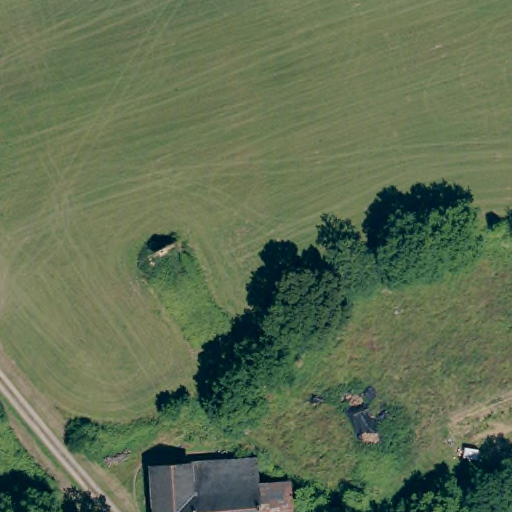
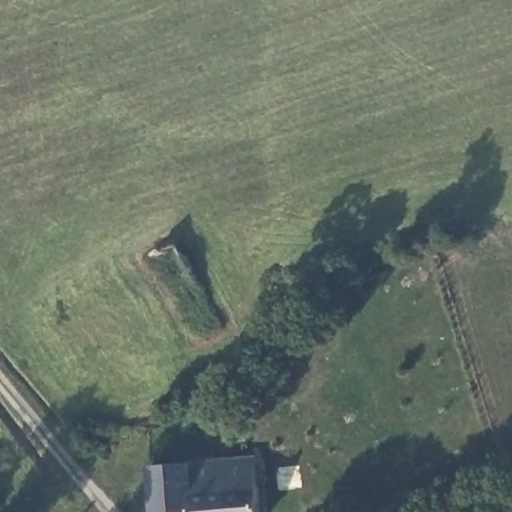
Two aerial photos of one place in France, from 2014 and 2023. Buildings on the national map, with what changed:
unchanged [(151,463),(175,460),(255,455),(258,482),(261,512),(156,512),(151,463)]

